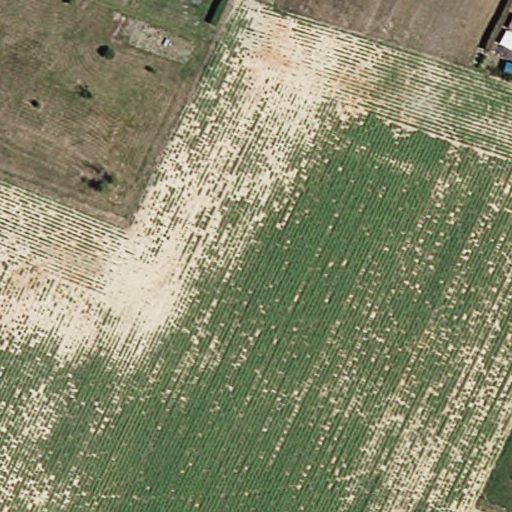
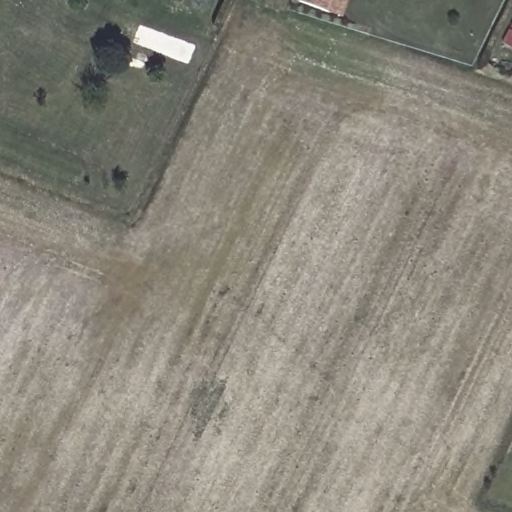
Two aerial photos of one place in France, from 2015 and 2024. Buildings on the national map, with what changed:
new [(343,18),(298,2),(299,0),(350,0),(343,18)]

